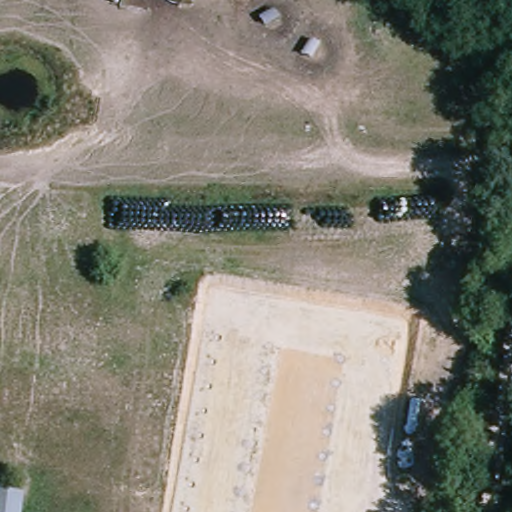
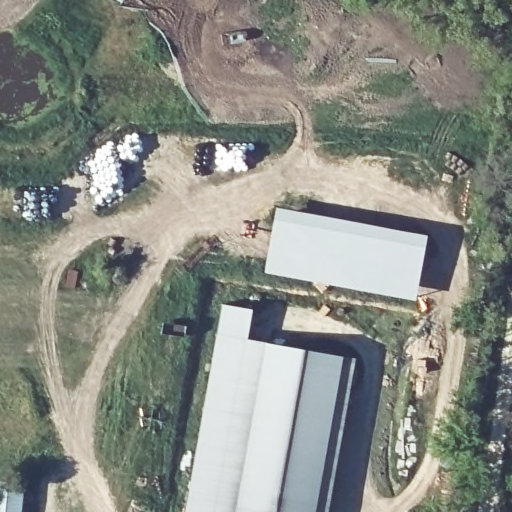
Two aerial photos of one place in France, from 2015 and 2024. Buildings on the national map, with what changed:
new [(276,209),(427,237),(415,302),(263,273),(276,209)]
new [(222,305),(252,311),(248,341),(357,359),(329,512),(185,512),(222,305)]
unchanged [(0,479),(24,482),(18,512),(0,512),(0,479)]

